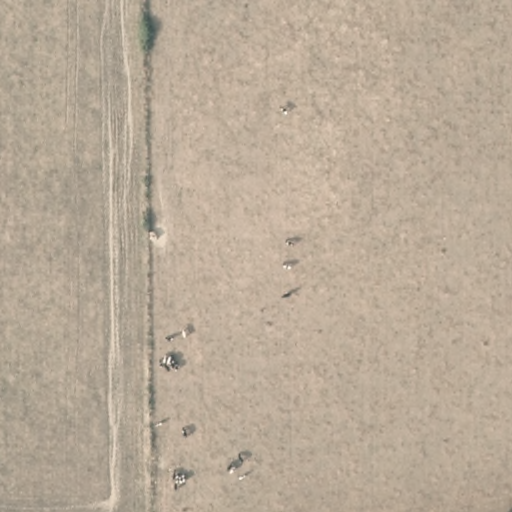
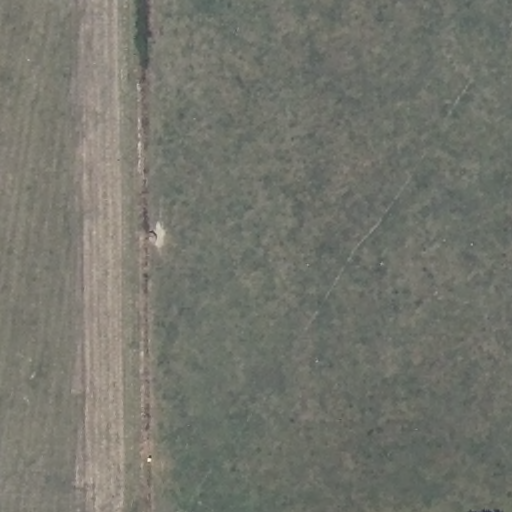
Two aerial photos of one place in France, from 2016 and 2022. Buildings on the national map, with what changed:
[]

